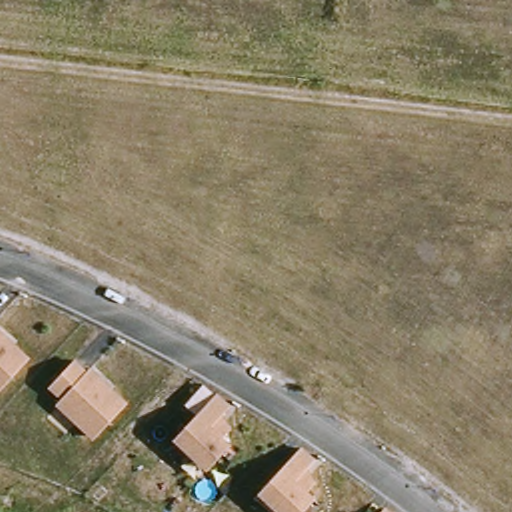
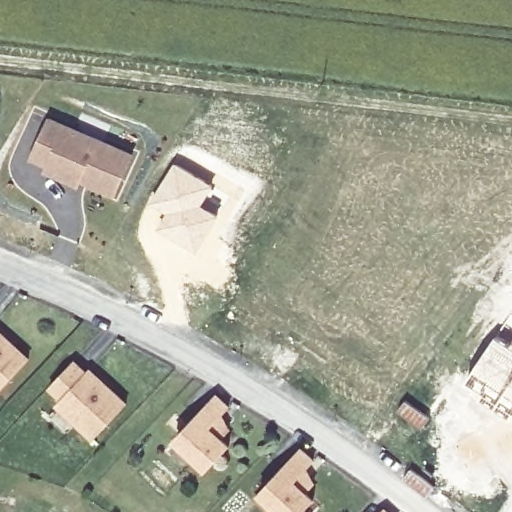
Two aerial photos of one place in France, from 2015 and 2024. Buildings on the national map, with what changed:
new [(65,176),(47,168),(49,162),(33,155),(50,117),(133,154),(115,193),(82,177),(79,183),(65,176)]
new [(174,161),(214,185),(202,204),(219,215),(195,253),(155,228),(163,215),(148,207),(174,161)]
unchanged [(0,333),(1,334),(11,342),(25,356),(0,384),(0,333)]
unchanged [(93,438),(55,404),(60,398),(48,387),(70,362),(83,373),(85,370),(99,383),(109,391),(123,405),(93,438)]
unchanged [(220,443),(228,450),(208,471),(175,440),(214,400),(227,412),(215,424),(228,434),(220,443)]
unchanged [(300,501),(308,508),(304,512),(270,512),(255,498),(293,458),(307,470),(296,482),(308,493),(300,501)]

